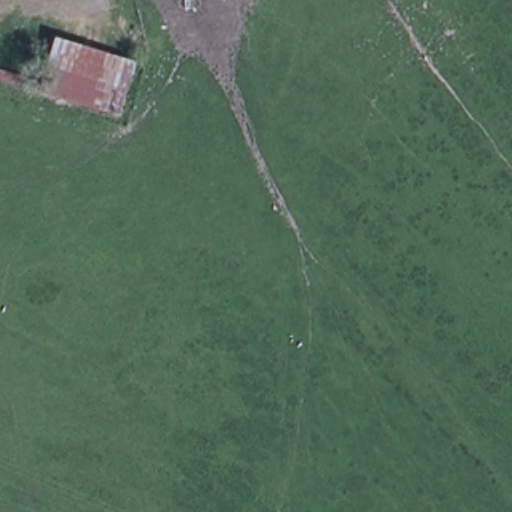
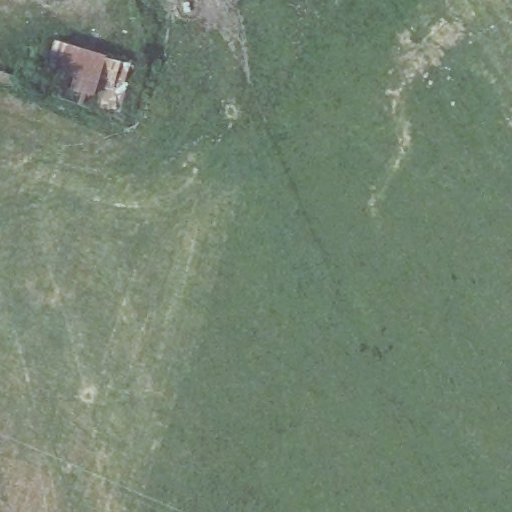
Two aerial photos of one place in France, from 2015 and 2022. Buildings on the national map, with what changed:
unchanged [(118,114),(0,78),(0,67),(45,81),(56,34),(138,60),(118,114)]

